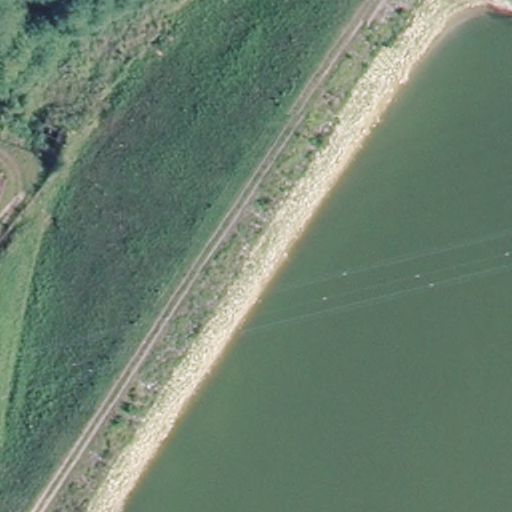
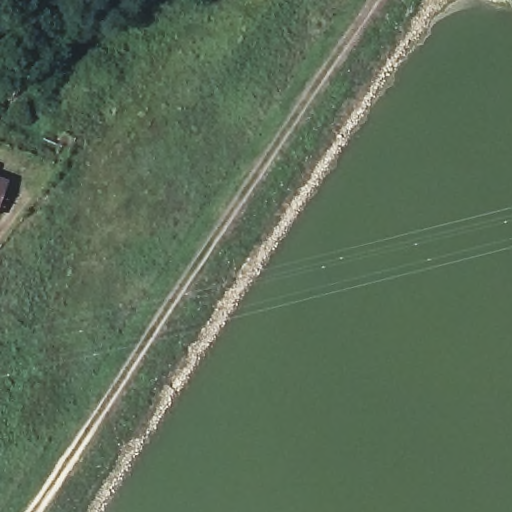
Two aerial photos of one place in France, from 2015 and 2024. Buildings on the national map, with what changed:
unchanged [(4,231),(0,229),(0,186),(12,189),(4,231)]

